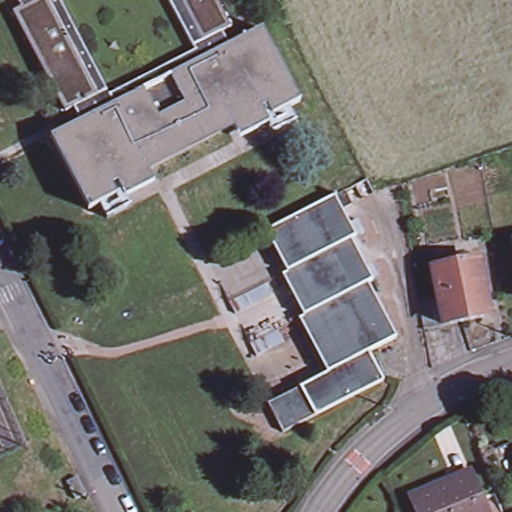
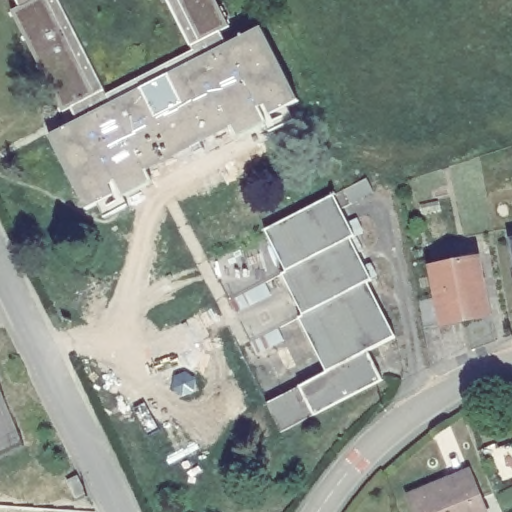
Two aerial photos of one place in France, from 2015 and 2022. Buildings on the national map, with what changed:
unchanged [(6,0),(63,0),(112,96),(197,52),(170,0),(215,0),(232,31),(222,36),(229,49),(80,126),(74,113),(66,118),(6,0)]
unchanged [(262,31),(301,105),(273,119),(268,109),(112,191),(117,200),(90,215),(52,141),(80,126),(229,49),(262,31)]
unchanged [(351,237),(287,271),(266,230),(335,195),(346,188),(353,202),(342,208),(355,235),(351,237)]
unchanged [(304,317),(282,274),(287,271),(351,237),(373,280),(369,282),(304,317)]
unchanged [(420,306),(441,302),(435,271),(465,266),(463,259),(480,256),(480,264),(483,283),(487,282),(489,297),(487,297),(490,319),(446,327),(425,331),(420,306)]
unchanged [(397,335),(368,350),(327,372),(300,318),(304,317),(369,282),(397,335)]
unchanged [(270,288),(275,300),(240,318),(234,307),(270,288)]
unchanged [(283,335),(290,347),(262,361),(257,349),(283,335)]
unchanged [(383,378),(282,432),(268,404),(327,372),(368,350),(383,378)]
unchanged [(413,502),(455,483),(454,479),(470,472),(487,512),(417,512),(413,502)]
unchanged [(93,496),(82,502),(72,485),(85,479),(93,496)]

